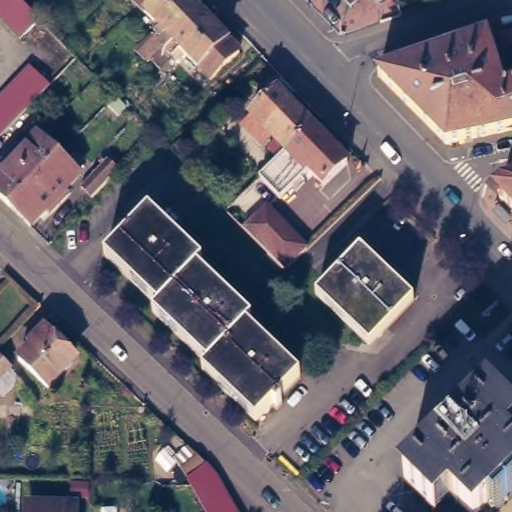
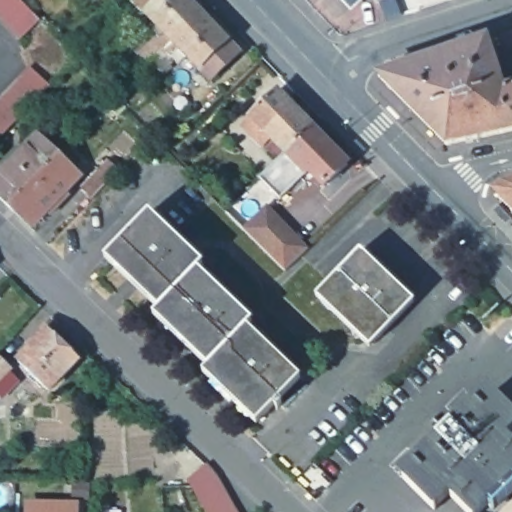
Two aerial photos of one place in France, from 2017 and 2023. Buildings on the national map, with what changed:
unchanged [(20,35),(0,14),(0,0),(24,0),(40,16),(20,35)]
unchanged [(157,35),(161,39),(168,31),(150,12),(138,0),(193,0),(195,2),(198,0),(209,0),(210,0),(202,9),(205,12),(209,16),(217,8),(223,15),(215,23),(232,39),(243,51),(215,79),(202,67),(190,54),(181,63),(173,55),(182,46),(176,40),(150,66),(137,55),(157,35)]
unchanged [(380,2),(379,0),(387,0),(380,2)]
unchanged [(512,38),(512,55),(507,56),(503,41),(512,38)]
unchanged [(378,76),(487,40),(504,91),(512,89),(512,131),(447,145),(378,76)]
unchanged [(30,64),(50,82),(0,133),(0,95),(30,64)]
unchanged [(278,135),(268,125),(272,123),(267,119),(257,127),(247,117),(257,107),(280,85),(295,100),(315,120),(290,146),(287,145),(280,152),(270,142),(278,135)]
unchanged [(326,180),(312,165),(283,193),(263,172),(280,156),(290,146),(315,120),(335,141),(350,156),(326,180)]
unchanged [(39,181),(18,162),(42,136),(63,156),(39,181)]
unchanged [(85,175),(59,202),(39,181),(63,156),(85,175)]
unchanged [(13,207),(0,194),(0,180),(18,162),(39,181),(13,207)]
unchanged [(97,200),(86,190),(112,163),(123,174),(97,200)]
unchanged [(59,202),(35,227),(13,207),(39,181),(59,202)]
unchanged [(500,195),(512,191),(512,211),(500,199),(500,195)]
unchanged [(271,206),(312,248),(289,270),(248,229),(271,206)]
unchanged [(247,327),(301,378),(279,401),(274,406),(260,421),(207,370),(212,364),(157,311),(162,306),(108,255),(149,212),(203,264),(198,270),(252,322),(247,327)]
unchanged [(373,345),(320,293),(360,250),(414,302),(373,345)]
unchanged [(53,389),(25,367),(0,392),(0,363),(42,317),(82,357),(53,389)]
unchanged [(480,512),(465,512),(447,495),(432,510),(400,478),(430,452),(418,442),(447,413),(457,425),(488,397),(512,424),(512,481),(510,480),(480,512)]
unchanged [(187,486),(205,470),(206,470),(210,475),(217,482),(234,512),(202,512),(190,491),(187,486)]
unchanged [(75,498),(74,512),(30,512),(30,497),(75,498)]

